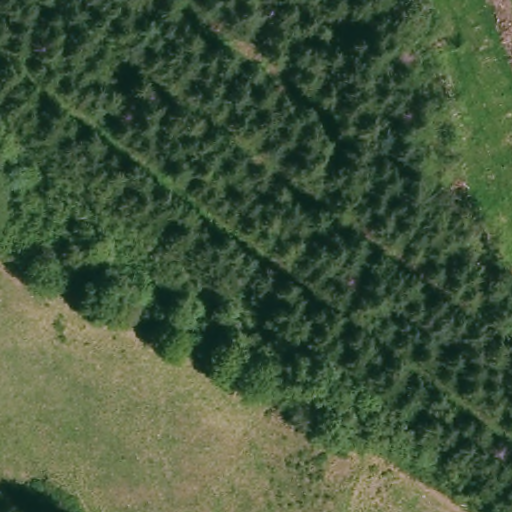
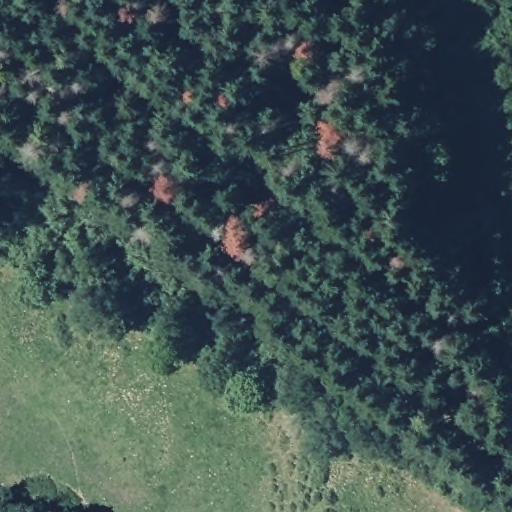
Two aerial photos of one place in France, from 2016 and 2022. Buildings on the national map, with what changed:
[]

